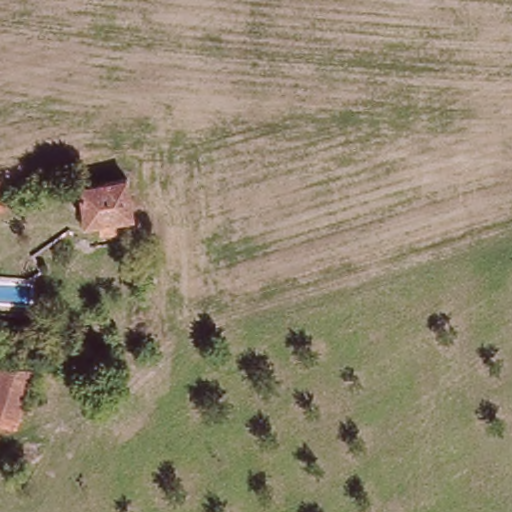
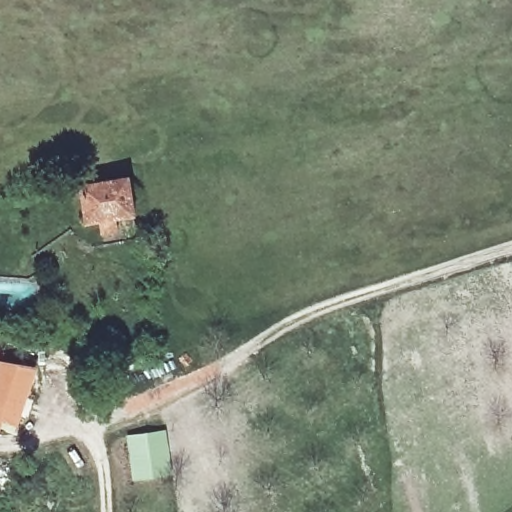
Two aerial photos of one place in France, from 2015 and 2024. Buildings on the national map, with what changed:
unchanged [(87,229),(82,190),(125,185),(130,223),(87,229)]
unchanged [(3,365),(34,375),(20,417),(10,415),(4,428),(0,427),(0,374),(3,365)]
new [(167,428),(172,475),(132,481),(126,434),(167,428)]

